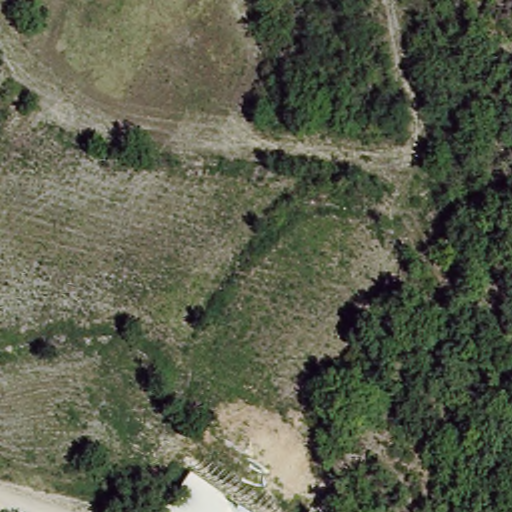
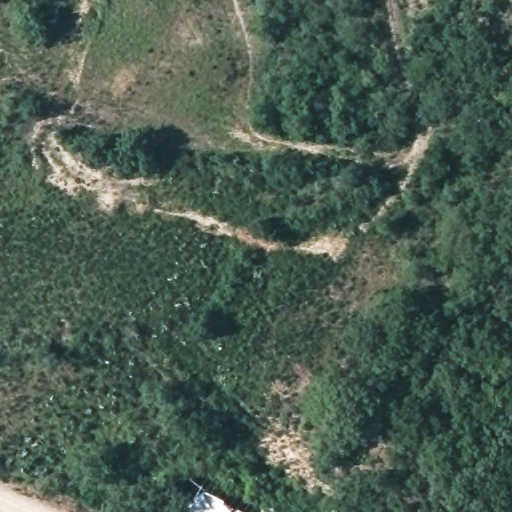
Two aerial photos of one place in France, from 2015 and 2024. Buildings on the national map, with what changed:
unchanged [(249,512),(169,512),(192,475),(249,512)]

